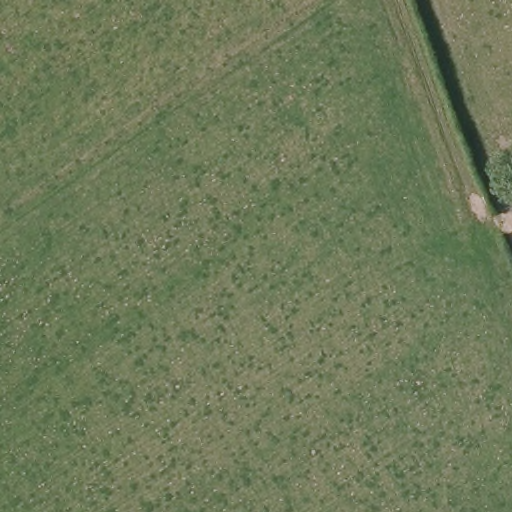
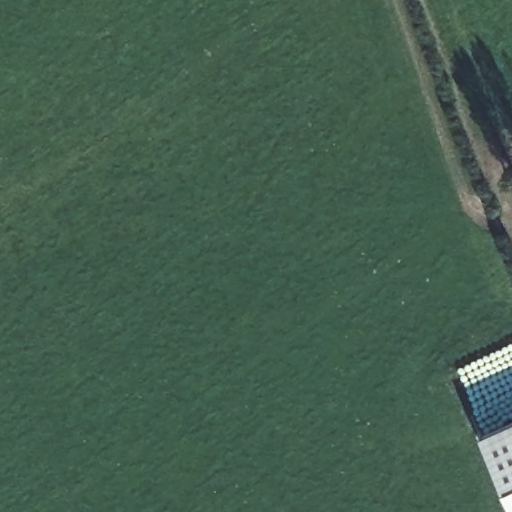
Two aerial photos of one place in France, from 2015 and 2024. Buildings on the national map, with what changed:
new [(482,435),(512,421),(512,503),(482,435)]

